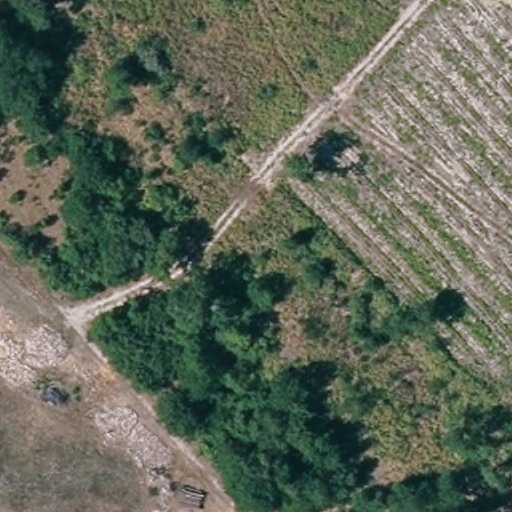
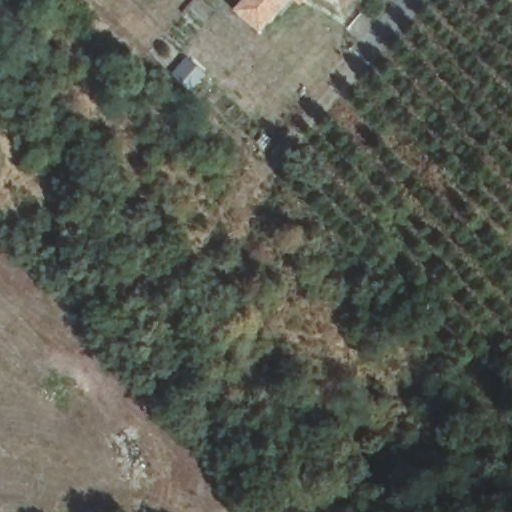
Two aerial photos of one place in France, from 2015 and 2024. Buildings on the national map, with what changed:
new [(258,33),(230,11),(239,0),(286,0),(258,33)]
new [(300,6),(293,0),(304,0),(300,6)]

